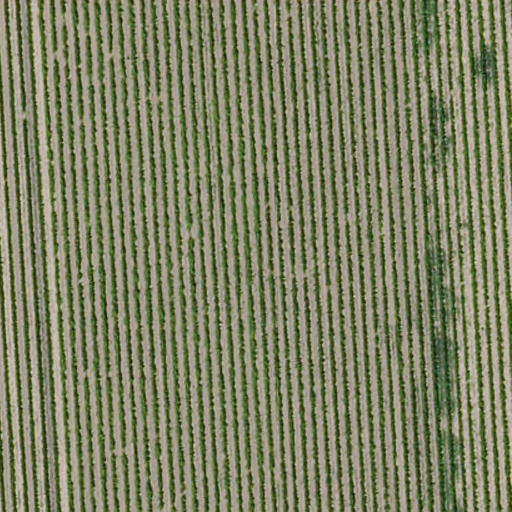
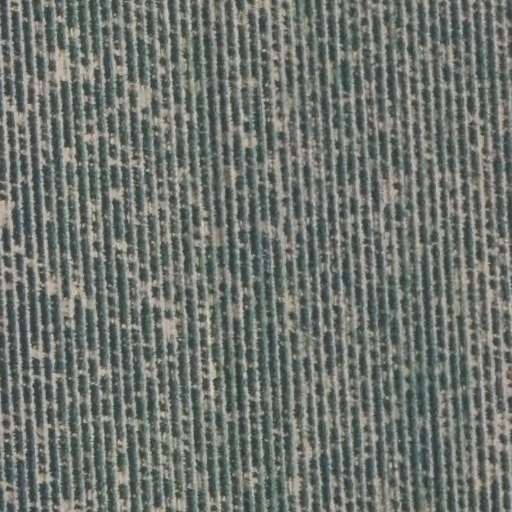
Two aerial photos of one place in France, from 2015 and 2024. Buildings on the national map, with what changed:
[]

